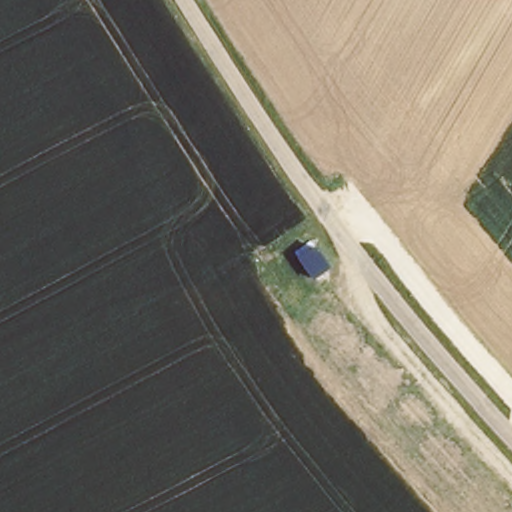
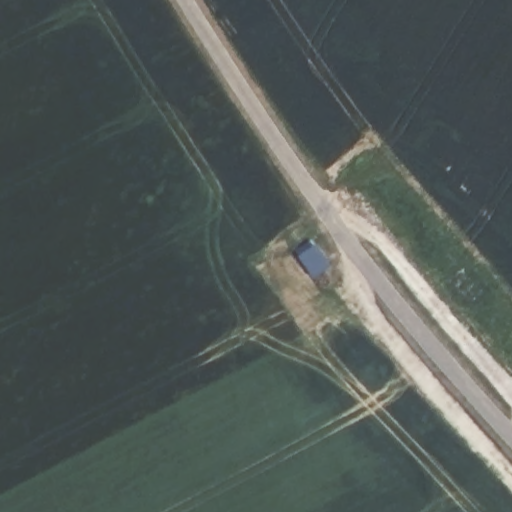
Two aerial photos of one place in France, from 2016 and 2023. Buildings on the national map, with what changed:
unchanged [(295,252),(307,244),(320,263),(310,273),(295,252)]

